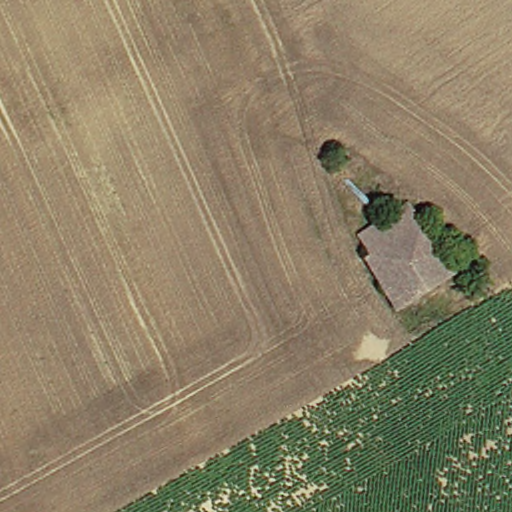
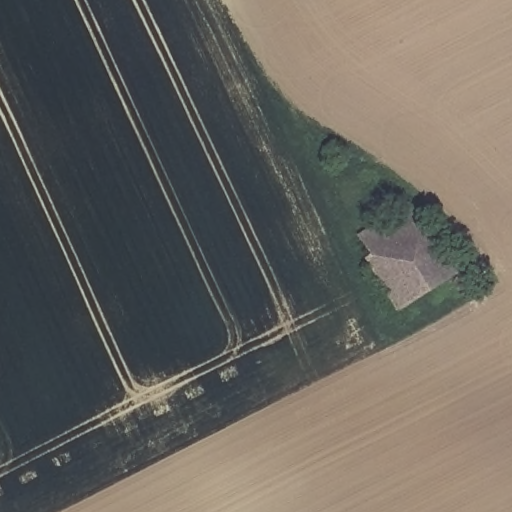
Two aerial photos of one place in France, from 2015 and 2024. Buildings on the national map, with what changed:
unchanged [(395,307),(357,259),(362,253),(355,239),(402,207),(431,242),(446,232),(462,255),(395,307)]

